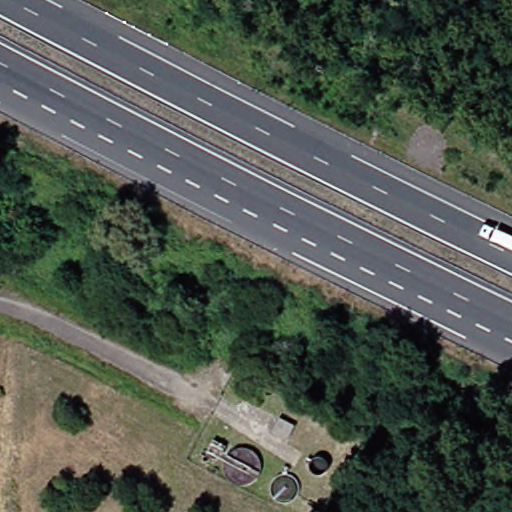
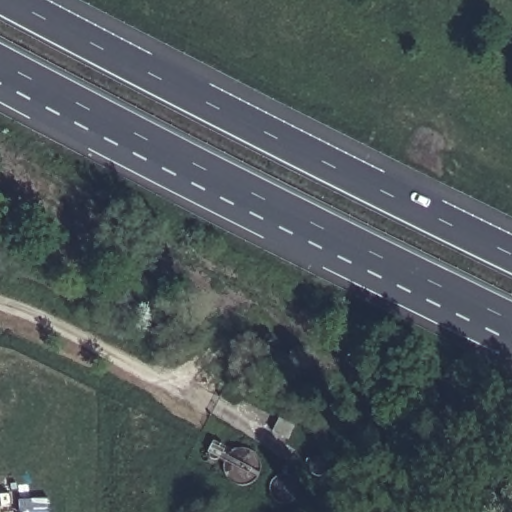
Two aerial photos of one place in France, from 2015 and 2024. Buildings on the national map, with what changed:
unchanged [(276,416),(287,422),(278,439),(267,433),(276,416)]
unchanged [(316,443),(321,441),(325,442),(330,444),(333,447),(335,452),(335,456),(333,461),(330,464),(326,467),(321,467),(317,466),(313,464),(310,448),(312,445),(316,443)]
unchanged [(268,466),(272,462),(277,460),(283,460),(288,461),(293,464),(296,468),(299,474),(300,479),(298,484),(295,489),(291,493),(287,495),(281,496),(276,495),(271,493),(267,489),(263,474),(265,470),(268,466)]

